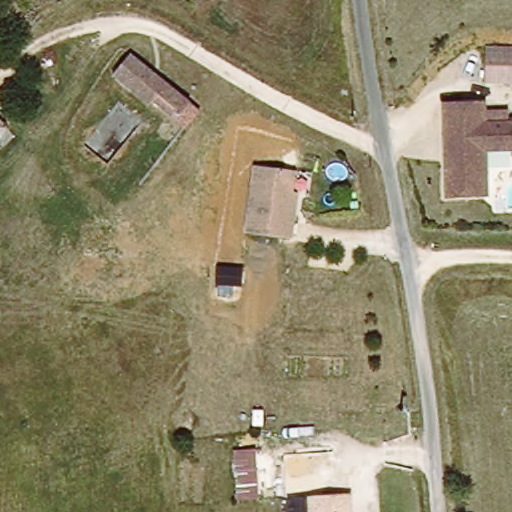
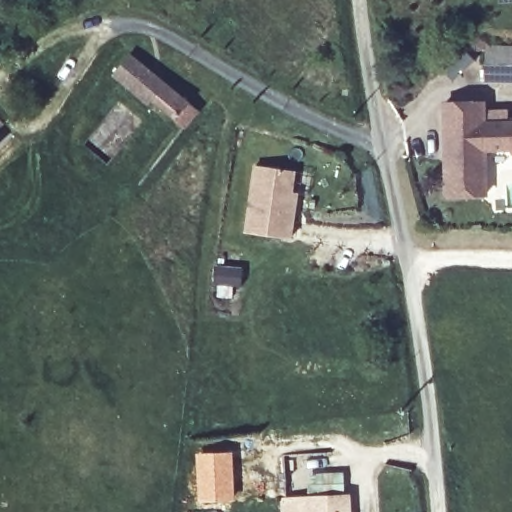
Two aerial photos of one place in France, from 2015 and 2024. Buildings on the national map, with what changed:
unchanged [(487,82),(488,46),(512,47),(512,83),(487,82)]
unchanged [(150,97),(147,101),(108,69),(126,47),(165,80),(196,106),(182,124),(150,97)]
unchanged [(489,150),(488,194),(446,192),(449,102),(489,101),(488,121),(512,122),(512,150),(489,150)]
unchanged [(0,148),(0,141),(3,145),(0,148)]
unchanged [(297,224),(294,241),(247,235),(256,167),(298,173),(294,195),(302,197),(297,224)]
new [(232,450),(235,501),(196,503),(194,453),(232,450)]
unchanged [(353,512),(313,512),(312,500),(352,498),(353,512)]

